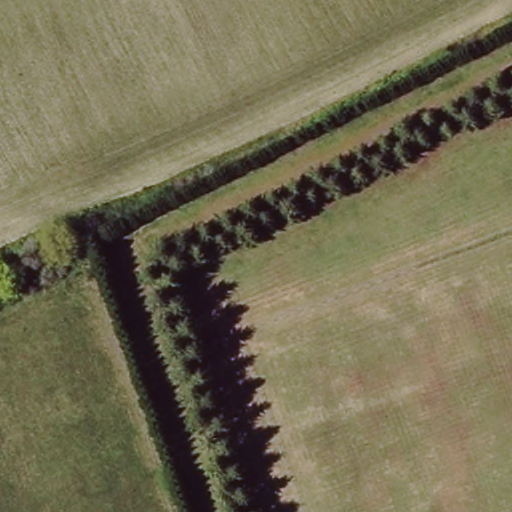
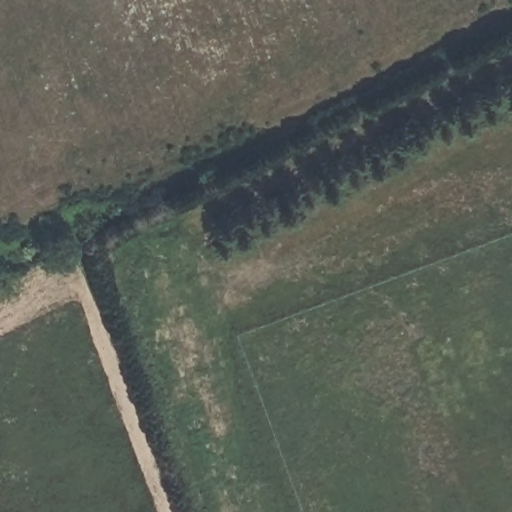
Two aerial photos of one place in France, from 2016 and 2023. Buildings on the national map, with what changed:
[]

